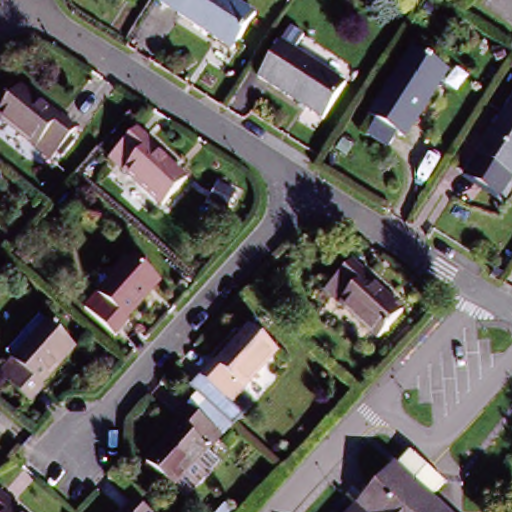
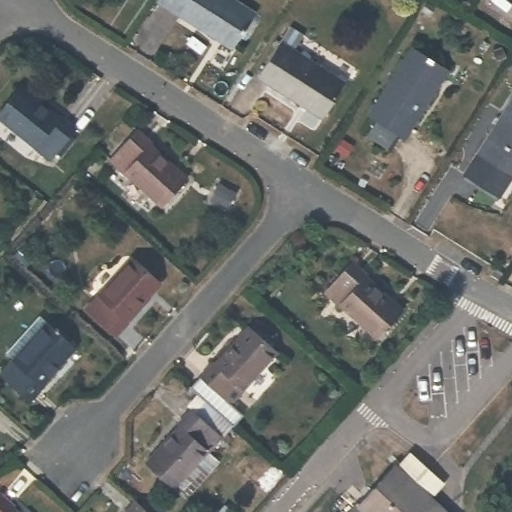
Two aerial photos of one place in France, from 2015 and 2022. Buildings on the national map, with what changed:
unchanged [(175,16),(155,2),(157,0),(186,0),(175,16)]
unchanged [(225,50),(207,38),(175,16),(186,0),(229,0),(249,14),(225,50)]
unchanged [(322,124),(260,81),(284,45),(345,87),(322,124)]
unchanged [(365,140),(375,125),(366,119),(412,50),(449,76),(403,145),(395,139),(385,152),(365,140)]
unchanged [(32,150),(34,145),(0,120),(0,111),(17,87),(55,116),(57,113),(74,126),(48,160),(32,150)]
unchanged [(460,176),(465,168),(512,97),(512,174),(510,177),(496,199),(460,176)]
unchanged [(159,206),(107,160),(137,127),(152,141),(148,145),(185,178),(159,206)]
unchanged [(123,322),(127,326),(114,339),(78,307),(91,291),(97,297),(130,260),(158,285),(123,322)]
unchanged [(381,336),(344,305),(341,309),(325,295),(352,261),(369,276),(365,280),(404,311),(381,336)]
unchanged [(40,393),(45,399),(32,411),(0,380),(0,371),(7,363),(4,360),(37,324),(44,330),(47,327),(75,353),(40,393)]
unchanged [(242,391),(244,395),(232,410),(199,380),(212,365),(219,369),(250,330),(276,352),(242,391)]
unchanged [(219,448),(212,443),(180,480),(156,458),(190,421),(186,418),(200,401),(234,431),(219,448)]
unchanged [(386,460),(400,444),(432,473),(419,490),(444,512),(331,512),(382,457),(386,460)]
unchanged [(12,512),(0,512),(0,496),(15,510),(12,512)]
unchanged [(148,512),(122,512),(134,499),(148,512)]

